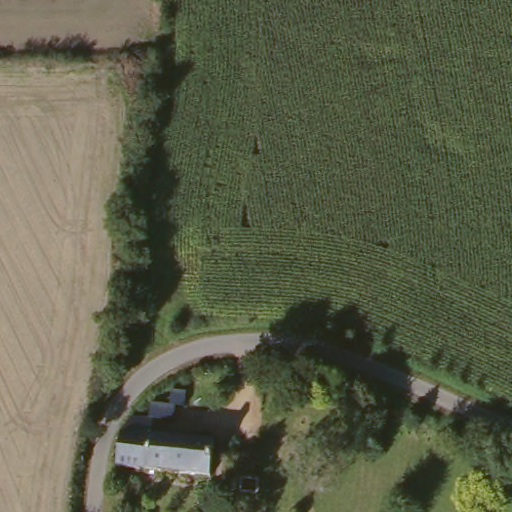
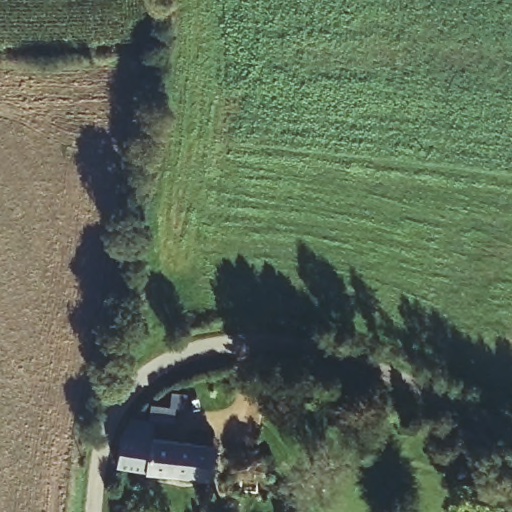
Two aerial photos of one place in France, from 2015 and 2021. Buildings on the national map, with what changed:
unchanged [(130,428),(133,408),(158,411),(155,431),(212,438),(211,440),(208,478),(118,465),(122,427),(130,428)]

